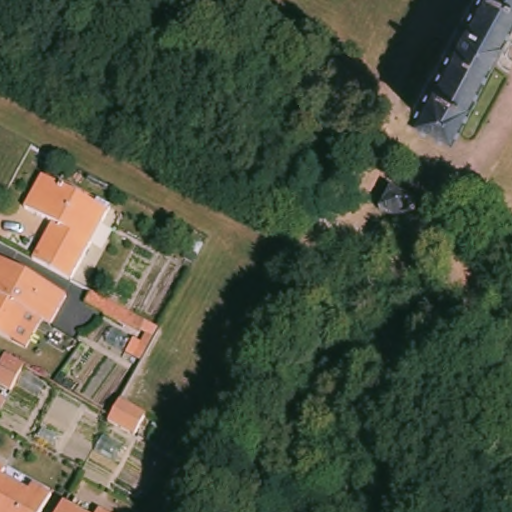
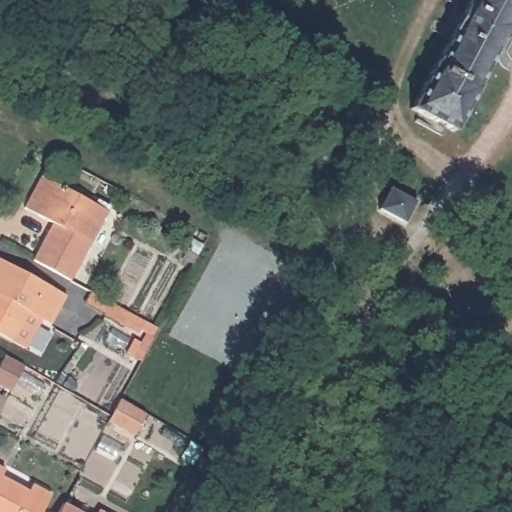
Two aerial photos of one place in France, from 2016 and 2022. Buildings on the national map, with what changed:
unchanged [(512,25),(509,30),(512,30),(512,44),(508,56),(512,59),(512,64),(508,71),(496,55),(491,63),(458,130),(457,130),(412,105),(425,81),(447,40),(426,30),(431,20),(433,16),(443,21),(453,5),(445,0),(512,0),(512,25)]
unchanged [(31,257),(50,221),(24,205),(40,176),(107,212),(71,279),(31,257)]
unchanged [(417,202),(406,225),(390,216),(401,192),(417,202)]
unchanged [(66,296),(51,324),(42,319),(25,347),(0,334),(0,259),(66,296)]
unchanged [(86,288),(138,317),(141,319),(134,330),(80,299),(86,288)]
unchanged [(20,365),(6,390),(0,387),(0,354),(20,365)]
unchanged [(143,409),(131,431),(103,415),(107,410),(116,395),(143,409)]
unchanged [(0,400),(0,399),(1,400),(0,400)]
unchanged [(5,470),(2,476),(27,490),(32,484),(50,495),(40,512),(0,512),(0,467),(5,470)]
unchanged [(83,512),(62,512),(67,503),(83,512)]

